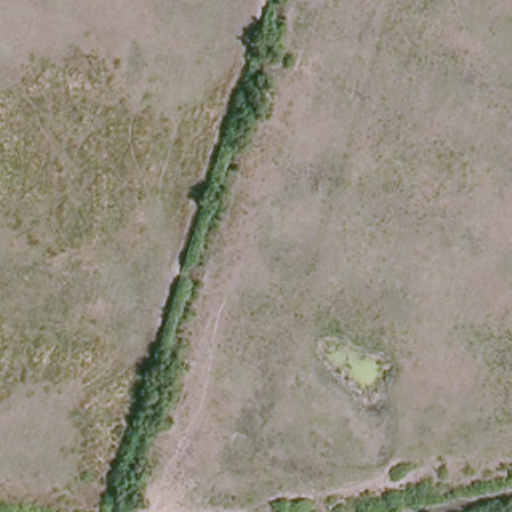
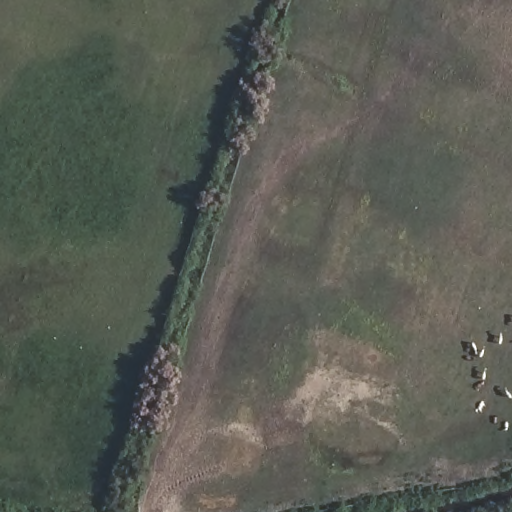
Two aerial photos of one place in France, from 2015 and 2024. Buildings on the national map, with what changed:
[]

